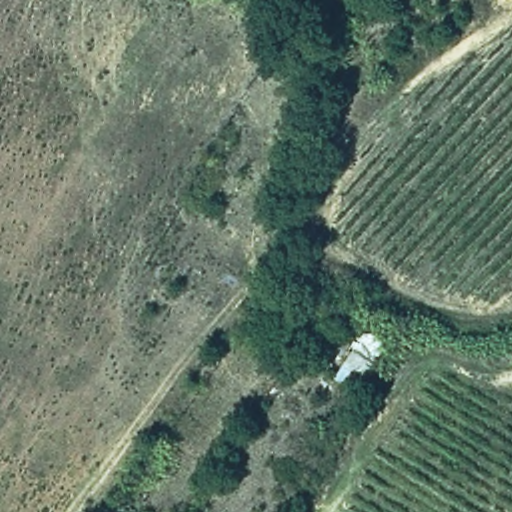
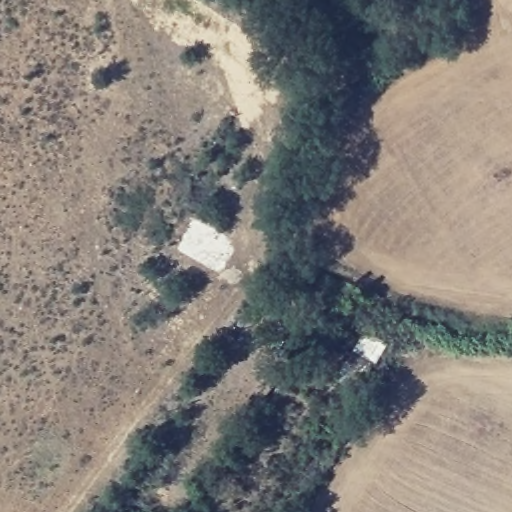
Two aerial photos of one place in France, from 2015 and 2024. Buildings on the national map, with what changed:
unchanged [(354,341),(359,333),(381,347),(361,380),(342,369),(346,361),(312,339),(322,321),(354,341)]

